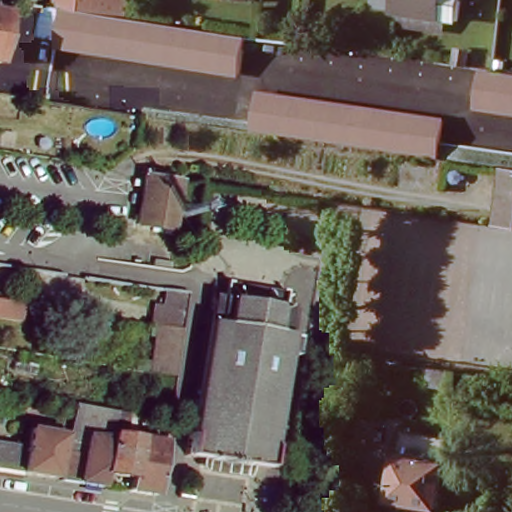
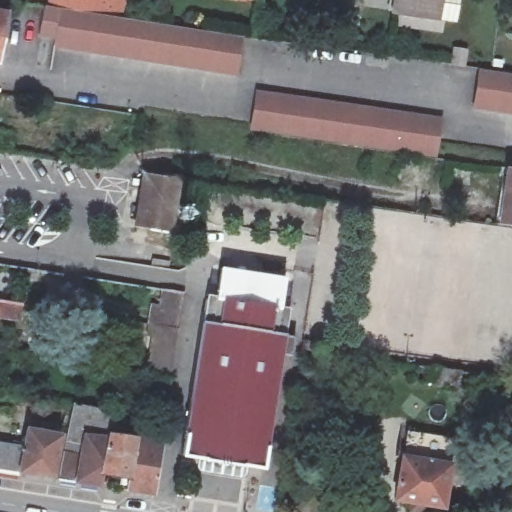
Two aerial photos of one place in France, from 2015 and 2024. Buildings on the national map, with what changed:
unchanged [(25,30),(10,27),(13,0),(29,0),(25,30)]
unchanged [(123,12),(82,6),(56,3),(45,1),(45,0),(124,0),(123,12)]
unchanged [(250,1),(242,0),(250,0),(250,1)]
unchanged [(434,15),(390,8),(391,0),(436,0),(434,15)]
unchanged [(0,21),(0,9),(2,10),(0,21)]
unchanged [(55,52),(60,12),(245,39),(238,78),(55,52)]
unchanged [(455,64),(458,47),(475,49),(473,66),(455,64)]
unchanged [(512,75),(512,117),(474,111),(479,71),(512,75)]
unchanged [(443,118),(435,161),(252,132),(258,90),(443,118)]
unchanged [(511,224),(504,223),(508,193),(503,192),(507,167),(512,167),(512,224),(511,224)]
unchanged [(171,181),(176,182),(169,235),(133,230),(140,176),(171,181)]
unchanged [(150,322),(153,305),(162,307),(164,288),(187,291),(182,327),(160,324),(150,322)]
unchanged [(266,468),(185,455),(209,295),(292,307),(266,468)]
unchanged [(16,317),(0,314),(0,300),(18,303),(16,317)]
unchanged [(157,372),(152,372),(160,324),(182,327),(175,375),(157,372)]
unchanged [(459,389),(434,385),(437,367),(462,371),(459,389)]
unchanged [(98,485),(56,479),(69,404),(109,411),(106,433),(100,474),(98,485)]
unchanged [(24,428),(59,434),(51,478),(0,470),(0,443),(20,447),(24,428)]
unchanged [(455,438),(444,507),(396,499),(408,431),(455,438)]
unchanged [(132,437),(126,478),(100,474),(106,433),(132,437)]
unchanged [(159,442),(152,494),(125,490),(126,478),(132,437),(159,442)]

